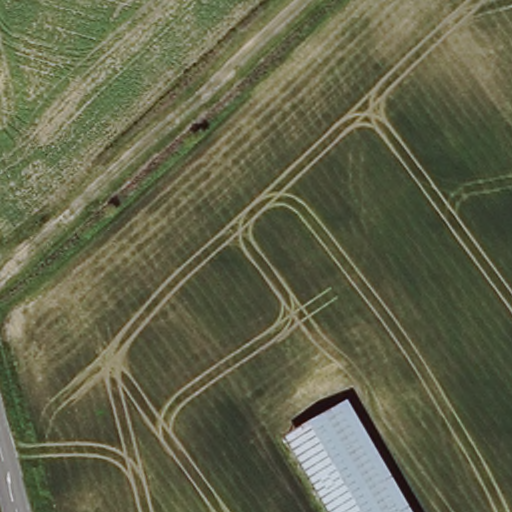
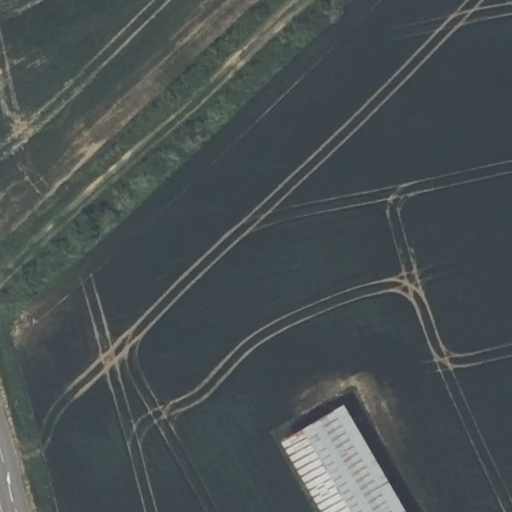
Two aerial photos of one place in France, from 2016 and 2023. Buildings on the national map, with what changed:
unchanged [(324,512),(282,439),(345,404),(409,512),(324,512)]

